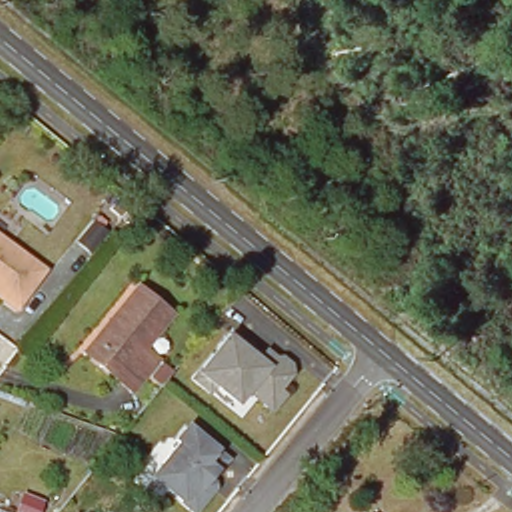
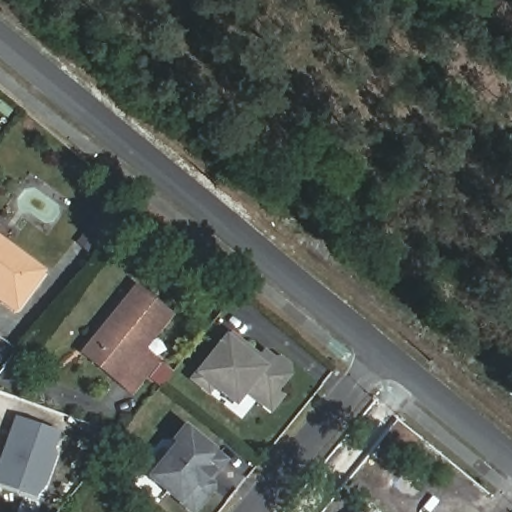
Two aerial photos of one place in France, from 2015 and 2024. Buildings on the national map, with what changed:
unchanged [(17,307),(0,294),(0,238),(45,272),(17,307)]
unchanged [(87,355),(97,344),(140,292),(174,320),(146,354),(161,367),(142,389),(137,396),(87,355)]
unchanged [(249,394),(240,406),(197,374),(232,329),(262,354),(269,351),(293,368),(281,389),(288,396),(273,414),(249,394)]
new [(20,417),(60,432),(54,449),(57,454),(47,482),(37,493),(0,480),(0,470),(20,417)]
unchanged [(179,444),(175,441),(186,428),(226,460),(215,473),(213,472),(207,479),(213,484),(213,489),(194,512),(151,478),(179,444)]

